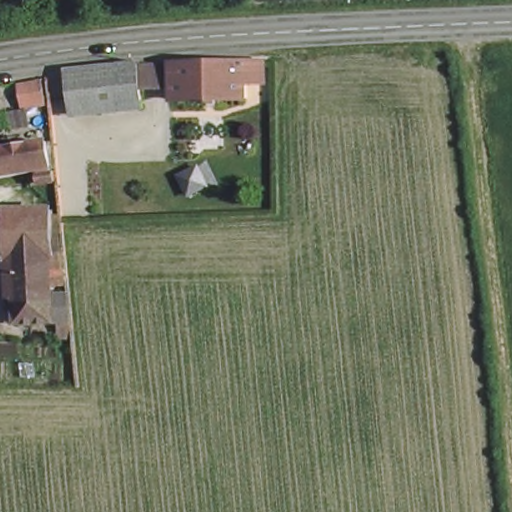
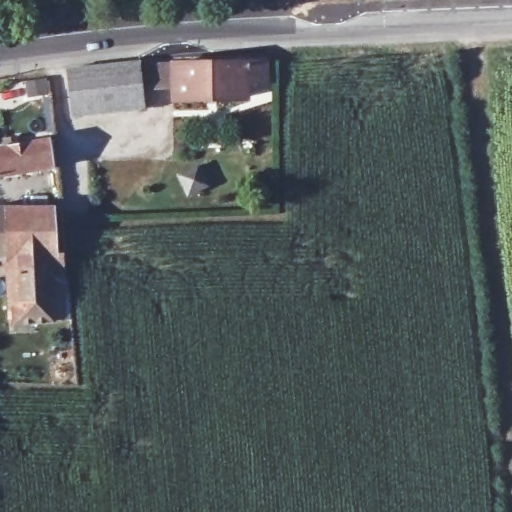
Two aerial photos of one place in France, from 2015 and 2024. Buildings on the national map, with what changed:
unchanged [(253,91),(178,96),(176,60),(267,56),(268,90),(268,100),(255,101),(253,91)]
unchanged [(70,116),(70,103),(68,62),(140,57),(142,100),(84,103),(84,115),(70,116)]
unchanged [(41,95),(21,97),(18,80),(38,77),(41,95)]
unchanged [(59,182),(41,185),(38,166),(0,172),(0,144),(49,137),(52,164),(57,163),(59,182)]
unchanged [(51,250),(18,250),(0,251),(0,206),(49,206),(51,250)]
unchanged [(47,292),(44,265),(17,265),(18,250),(51,250),(60,250),(64,290),(47,292)]
unchanged [(15,316),(17,265),(44,265),(47,292),(64,290),(66,315),(15,316)]

